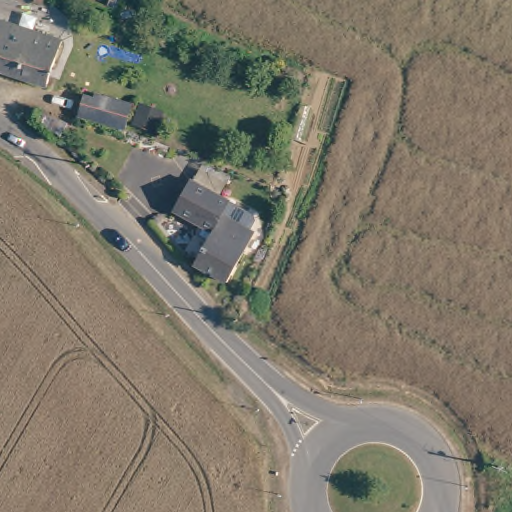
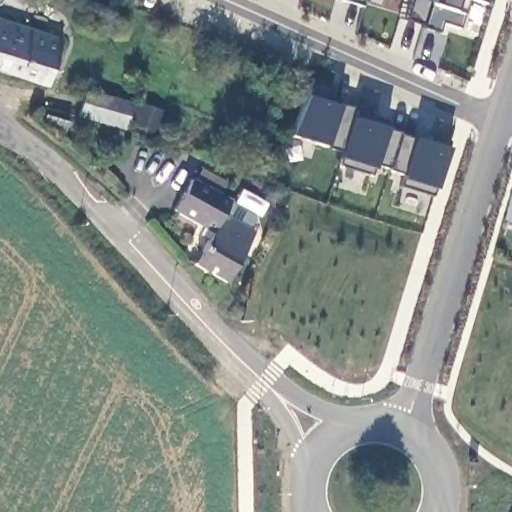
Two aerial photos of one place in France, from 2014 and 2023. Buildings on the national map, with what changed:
new [(361,6),(339,0),(340,0),(364,0),(361,6)]
new [(458,29),(439,23),(436,33),(422,28),(429,3),(431,0),(467,0),(458,29)]
new [(482,3),(470,0),(483,0),(482,3)]
unchanged [(12,70),(0,67),(0,17),(75,41),(59,87),(12,70)]
new [(325,102),(338,107),(385,121),(383,129),(416,138),(426,141),(426,135),(445,141),(446,148),(434,189),(430,195),(398,186),(401,179),(402,175),(374,167),(371,176),(337,166),(340,158),(343,151),(292,138),(306,96),(309,82),(329,89),(325,102)]
unchanged [(133,99),(125,123),(123,122),(102,115),(79,107),(85,87),(95,90),(96,87),(133,99)]
unchanged [(163,112),(155,129),(133,119),(140,102),(163,112)]
unchanged [(194,179),(234,201),(226,215),(256,232),(227,283),(220,278),(198,265),(217,232),(177,210),(194,179)]

